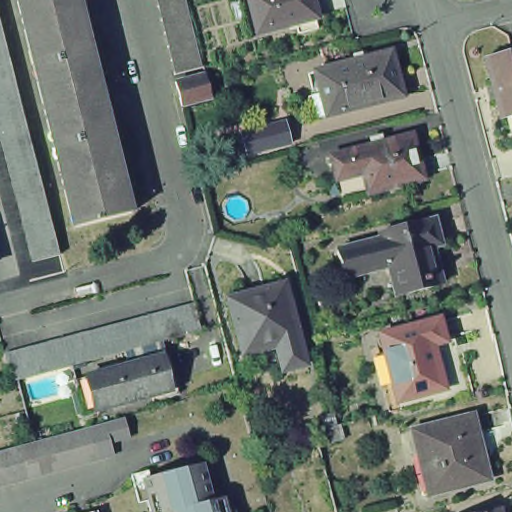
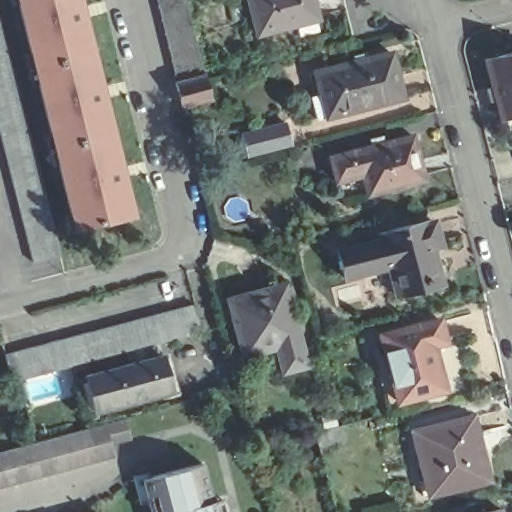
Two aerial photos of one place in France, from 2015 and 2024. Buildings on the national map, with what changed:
unchanged [(74,0),(86,51),(29,65),(13,0),(74,0)]
unchanged [(169,79),(150,0),(180,0),(198,72),(169,79)]
unchanged [(286,24),(248,34),(239,0),(304,0),(309,17),(306,19),(309,29),(289,34),(286,24)]
unchanged [(512,49),(512,114),(491,120),(474,60),(512,49)]
unchanged [(28,272),(0,165),(0,51),(54,265),(28,272)]
unchanged [(86,51),(105,131),(48,146),(29,65),(86,51)]
unchanged [(397,97),(321,116),(309,71),(386,52),(397,97)]
unchanged [(206,102),(178,111),(171,87),(199,79),(206,102)]
unchanged [(285,122),(291,144),(247,155),(241,133),(285,122)]
unchanged [(105,131),(125,214),(68,227),(48,146),(105,131)]
unchanged [(419,179),(363,194),(358,175),(331,181),(324,155),(408,135),(419,179)]
unchanged [(430,245),(422,247),(431,286),(388,297),(380,267),(334,278),(326,252),(373,240),(371,232),(415,221),(416,223),(424,221),(430,245)]
unchanged [(301,367),(292,370),(279,373),(272,350),(239,358),(223,299),(270,286),(279,283),(301,367)]
unchanged [(0,359),(0,355),(188,305),(196,331),(6,382),(0,359)]
unchanged [(383,399),(371,352),(381,350),(376,330),(436,315),(441,338),(429,341),(439,380),(392,392),(393,397),(383,399)]
unchanged [(74,376),(86,373),(152,357),(161,355),(170,395),(160,397),(158,392),(94,407),(83,411),(74,376)]
unchanged [(115,418),(120,437),(101,442),(104,455),(0,483),(0,449),(95,423),(115,418)]
unchanged [(414,486),(419,485),(407,436),(473,419),(489,483),(423,500),(418,501),(414,486)]
unchanged [(344,439),(318,447),(314,432),(340,425),(344,439)]
unchanged [(207,502),(218,498),(222,512),(146,512),(138,480),(197,464),(207,502)]
unchanged [(497,512),(476,512),(496,507),(497,512)]
unchanged [(90,510),(90,512),(82,512),(90,510)]

